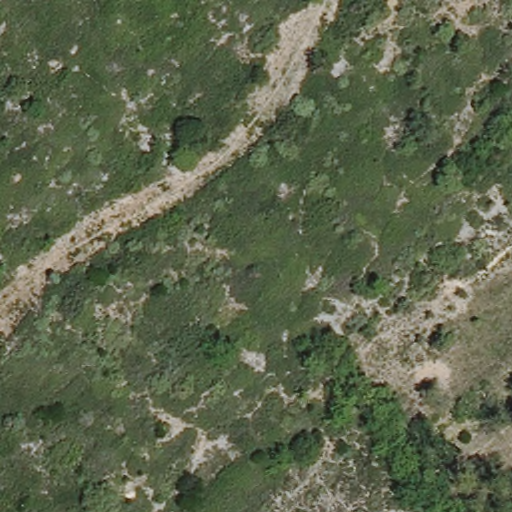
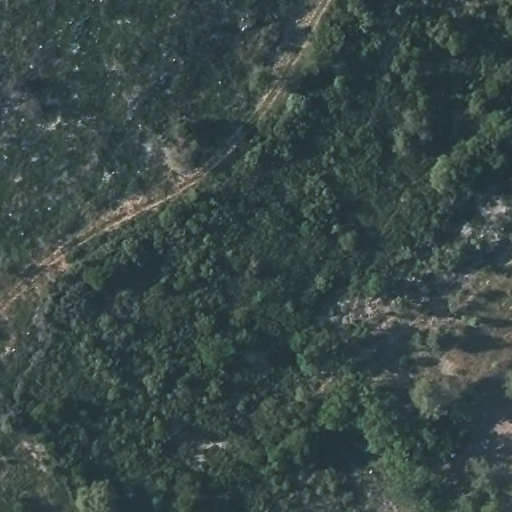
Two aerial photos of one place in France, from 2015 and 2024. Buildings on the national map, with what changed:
[]

